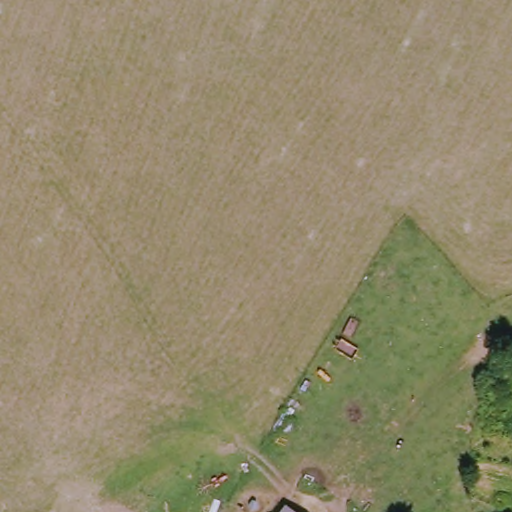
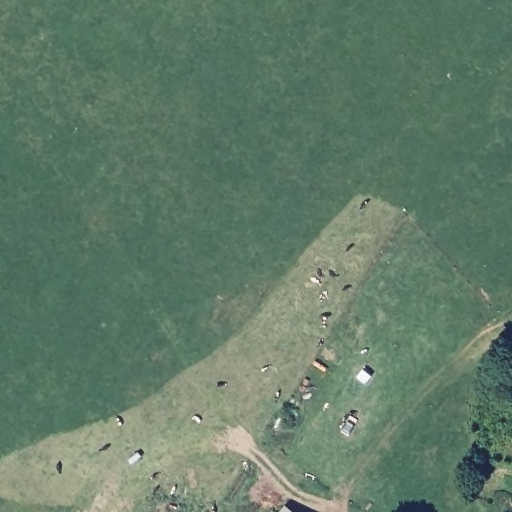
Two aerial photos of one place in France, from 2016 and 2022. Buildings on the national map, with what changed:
unchanged [(285,512),(289,507),(295,512),(285,512)]

